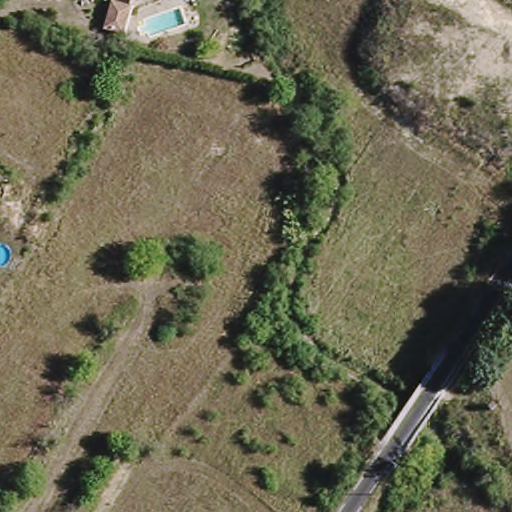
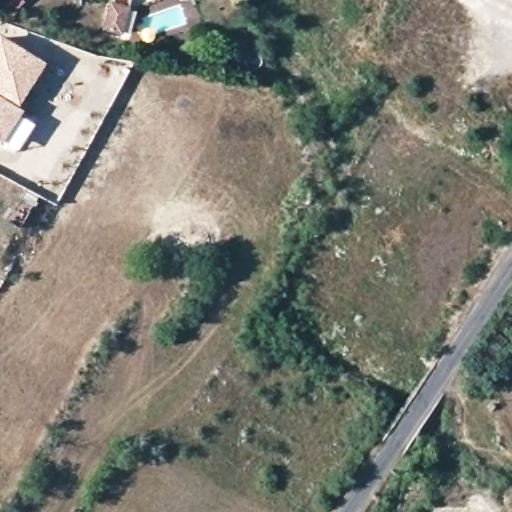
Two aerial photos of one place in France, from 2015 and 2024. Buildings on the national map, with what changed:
unchanged [(120,42),(101,36),(108,6),(129,12),(120,42)]
new [(3,146),(0,145),(0,33),(46,61),(19,105),(24,109),(21,114),(3,146)]
unchanged [(293,205),(296,182),(311,184),(308,207),(293,205)]

